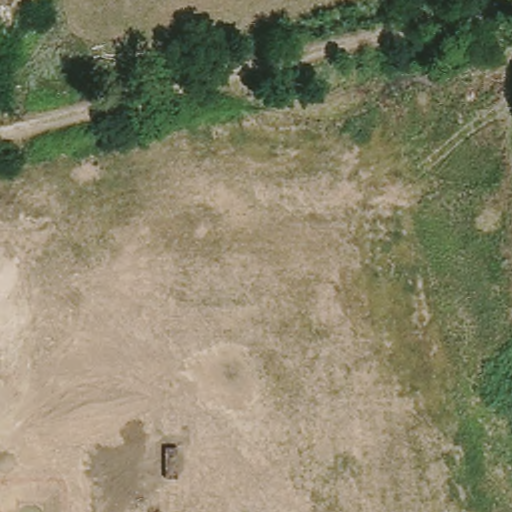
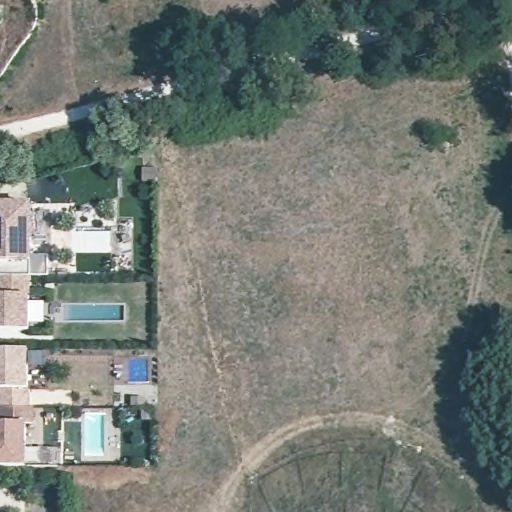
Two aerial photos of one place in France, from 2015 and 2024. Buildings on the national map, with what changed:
unchanged [(16,0),(43,0),(28,8),(16,0)]
new [(34,254),(51,255),(51,274),(29,274),(28,277),(1,276),(1,260),(0,260),(0,201),(34,200),(34,254)]
new [(29,333),(0,332),(0,277),(28,277),(30,294),(29,333)]
new [(29,389),(29,407),(0,407),(0,349),(29,349),(29,387),(29,389)]
new [(26,428),(25,473),(0,474),(0,407),(33,407),(33,428),(26,428)]

